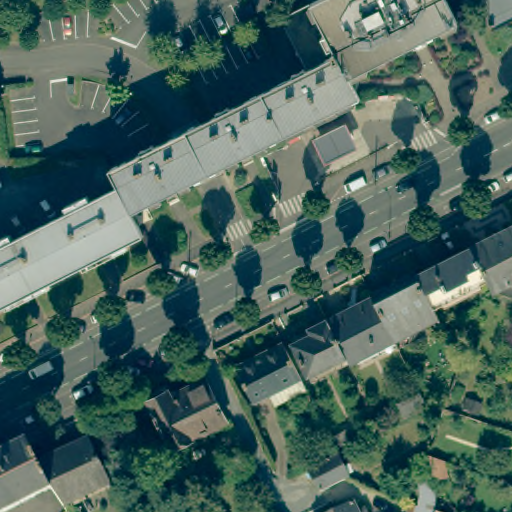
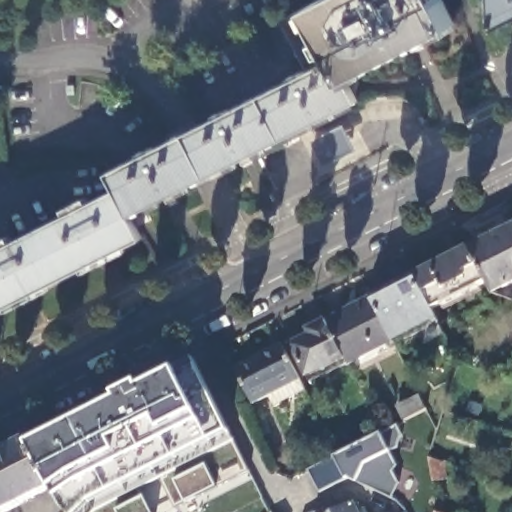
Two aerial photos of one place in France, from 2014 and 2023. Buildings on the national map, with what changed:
unchanged [(306,67),(279,15),(310,0),(312,0),(348,71),(360,94),(352,98),(355,104),(287,139),(284,133),(133,211),(120,184),(111,167),(306,67)]
unchanged [(456,16),(348,71),(312,0),(448,0),(456,16)]
unchanged [(491,26),(488,19),(487,0),(512,0),(512,15),(491,26)]
unchanged [(321,162),(312,136),(343,123),(351,146),(321,162)]
unchanged [(0,236),(4,234),(8,240),(120,184),(133,211),(144,234),(0,307),(0,236)]
unchanged [(490,285),(485,275),(468,241),(512,219),(512,274),(490,285)]
unchanged [(485,275),(431,302),(414,269),(468,241),(485,275)]
unchanged [(431,302),(436,311),(390,332),(369,292),(414,269),(431,302)]
unchanged [(390,332),(392,336),(347,357),(344,351),(325,314),(369,292),(390,332)]
unchanged [(344,351),(306,371),(291,340),(310,331),(306,324),(325,314),(344,351)]
unchanged [(269,389),(252,398),(233,362),(281,337),(300,373),(305,385),(274,400),(269,389)]
new [(140,488),(153,512),(68,512),(60,499),(50,488),(36,459),(32,450),(30,447),(120,401),(119,397),(142,386),(144,390),(178,372),(180,378),(198,369),(229,432),(249,470),(175,506),(160,477),(140,488)]
demolished [(168,449),(142,397),(163,386),(168,396),(203,378),(224,421),(168,449)]
unchanged [(406,421),(399,407),(421,397),(429,411),(406,421)]
new [(319,491),(307,469),(335,454),(381,433),(397,425),(401,433),(396,448),(390,450),(397,464),(393,472),(399,482),(391,497),(346,477),(320,490),(319,491)]
demolished [(61,503),(50,488),(36,459),(61,447),(87,436),(95,452),(108,480),(61,503)]
unchanged [(36,459),(50,488),(2,512),(0,512),(0,455),(27,441),(32,450),(36,459)]
demolished [(427,475),(424,452),(444,462),(445,480),(431,510),(435,511),(435,512),(408,512),(404,504),(413,504),(415,473),(427,475)]
demolished [(346,477),(320,490),(319,491),(307,469),(335,454),(346,477)]
unchanged [(351,506),(357,503),(362,512),(329,512),(326,506),(346,496),(351,506)]
unchanged [(315,512),(326,506),(329,512),(315,512)]
unchanged [(403,512),(390,512),(400,507),(403,512)]
unchanged [(68,512),(67,512),(67,511),(68,512)]
new [(68,512),(67,512),(67,511),(68,512)]
unchanged [(435,512),(435,511),(437,512),(435,512)]

